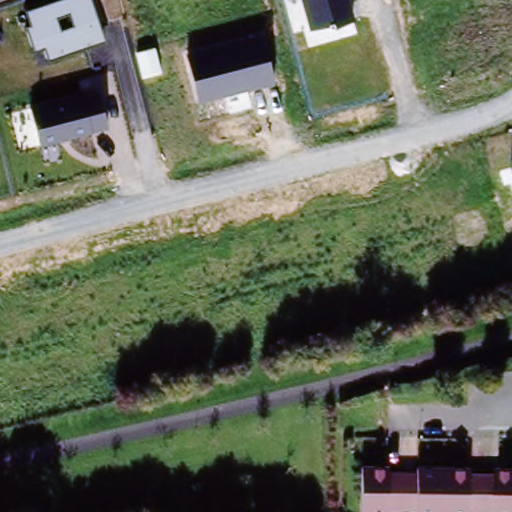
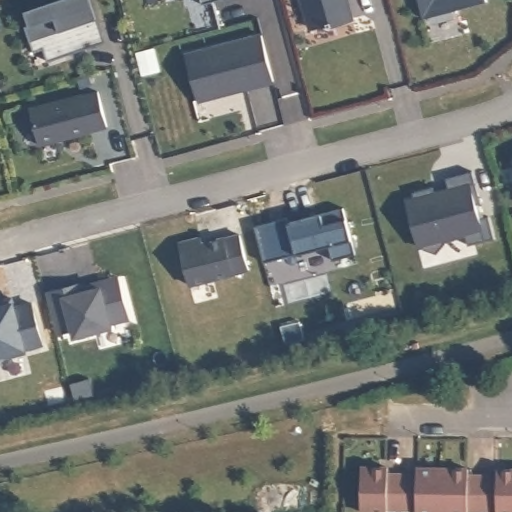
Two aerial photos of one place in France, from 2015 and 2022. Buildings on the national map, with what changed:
unchanged [(34,49),(28,27),(33,25),(27,9),(55,0),(92,0),(105,37),(48,57),(45,46),(34,49)]
new [(201,0),(217,0),(201,4),(201,0)]
unchanged [(349,0),(354,19),(310,30),(302,0),(349,0)]
new [(424,17),(420,0),(486,0),(487,2),(424,17)]
unchanged [(183,53),(263,35),(275,81),(197,102),(183,53)]
new [(136,52),(156,47),(162,74),(142,79),(136,52)]
unchanged [(31,107),(98,91),(107,129),(41,147),(31,107)]
new [(416,197),(414,194),(434,189),(437,194),(449,190),(447,179),(473,173),(481,204),(479,205),(483,220),(491,219),(495,239),(469,245),(467,235),(446,241),(437,255),(419,249),(406,200),(416,197)]
new [(287,217),(289,224),(321,215),(344,208),(348,220),(354,240),(357,254),(334,260),(330,246),(296,255),(296,256),(266,263),(256,226),(287,217)]
new [(200,236),(202,240),(226,237),(240,234),(250,271),(190,287),(178,242),(200,236)]
new [(84,281),(86,286),(119,277),(131,321),(113,327),(72,339),(70,333),(58,336),(45,293),(84,281)]
new [(26,351),(27,355),(4,360),(0,361),(0,306),(15,301),(17,310),(33,302),(44,346),(26,351)]
unchanged [(404,477),(406,512),(390,512),(364,512),(364,470),(391,470),(391,477),(404,477)]
unchanged [(419,477),(419,470),(446,471),(446,512),(406,512),(404,477),(419,477)]
unchanged [(486,512),(446,512),(446,471),(472,471),(472,478),(486,478),(486,512)]
unchanged [(486,478),(500,478),(501,471),(512,472),(512,512),(486,512),(486,478)]

